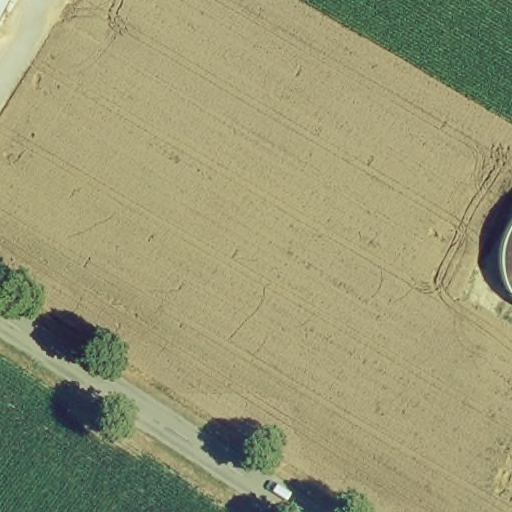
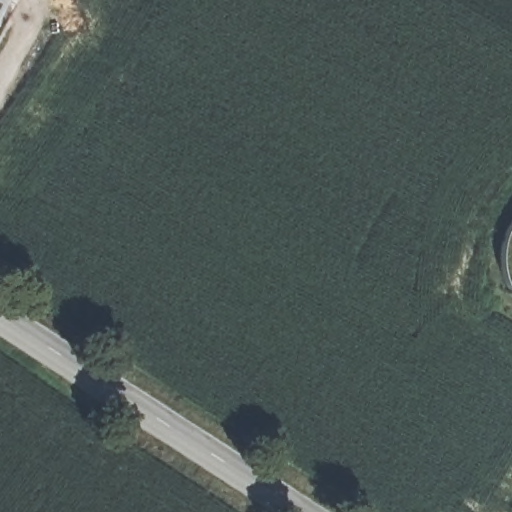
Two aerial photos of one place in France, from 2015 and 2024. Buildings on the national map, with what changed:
unchanged [(0,0),(5,0),(0,9),(0,0)]

